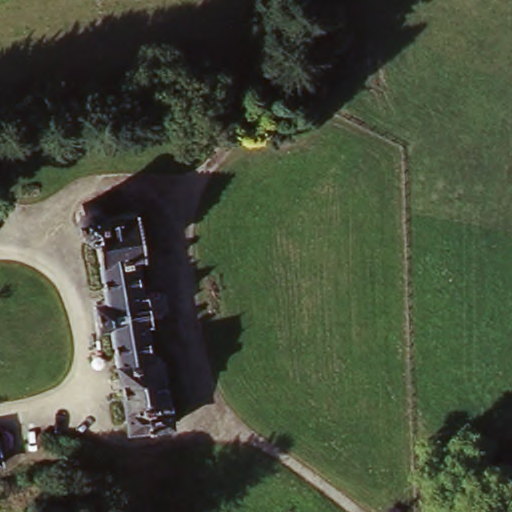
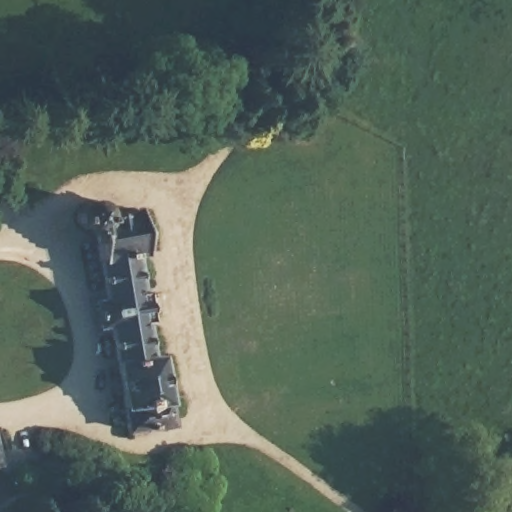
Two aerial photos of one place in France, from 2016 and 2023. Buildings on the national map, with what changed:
unchanged [(146,257),(136,260),(141,297),(147,296),(151,322),(146,323),(152,360),(162,357),(174,427),(129,435),(111,328),(101,331),(96,306),(110,305),(103,264),(100,264),(94,235),(84,235),(77,230),(72,220),(75,209),(82,205),(94,203),(102,207),(106,217),(139,212),(146,257)]
unchanged [(5,428),(11,463),(0,465),(0,429),(5,428)]

